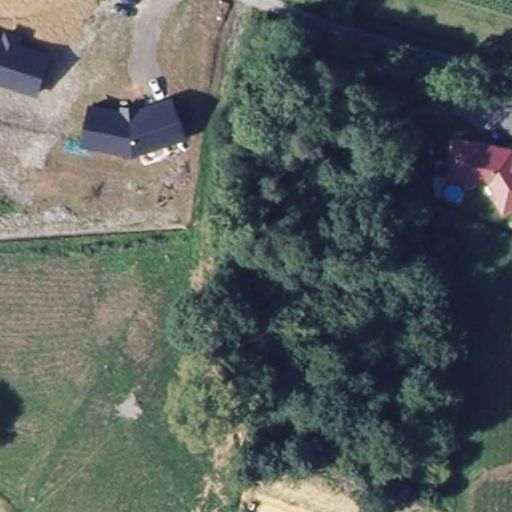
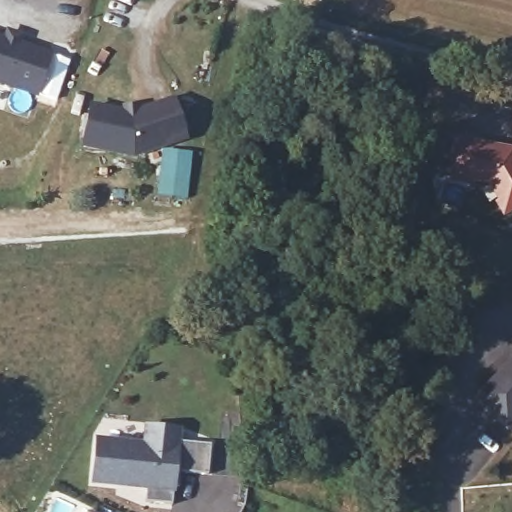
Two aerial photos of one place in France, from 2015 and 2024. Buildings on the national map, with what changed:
unchanged [(1,35),(4,26),(23,34),(21,41),(50,52),(36,93),(0,80),(0,34),(1,35)]
unchanged [(118,107),(119,104),(136,103),(136,106),(172,95),(186,138),(131,156),(79,145),(89,102),(118,107)]
unchanged [(505,196),(494,181),(479,178),(479,181),(454,177),(457,160),(455,160),(459,137),(503,144),(502,147),(511,149),(512,148),(512,209),(510,210),(502,197),(505,196)]
new [(191,152),(186,198),(157,195),(162,151),(191,152)]
new [(512,423),(482,394),(512,363),(512,423)]
new [(175,482),(173,500),(146,497),(148,480),(118,476),(118,479),(94,477),(99,435),(122,437),(122,440),(146,442),(148,422),(181,426),(180,437),(212,440),(209,470),(181,467),(180,482),(175,482)]

